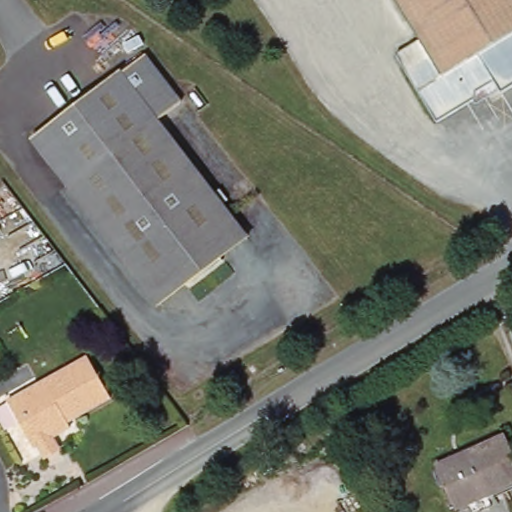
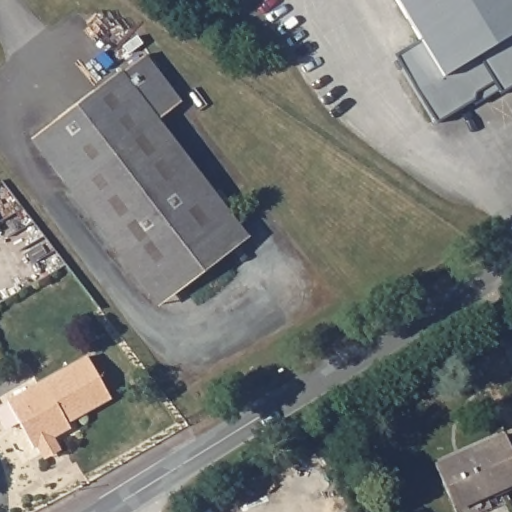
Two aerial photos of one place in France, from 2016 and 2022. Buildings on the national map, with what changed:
unchanged [(499,91),(492,81),(474,91),(470,102),(437,122),(396,57),(420,41),(394,0),(512,0),(512,84),(499,91)]
unchanged [(155,301),(30,139),(116,76),(118,79),(145,59),(181,108),(156,125),(242,236),(251,247),(227,265),(229,269),(193,295),(191,292),(163,312),(155,301)]
unchanged [(80,362),(102,400),(57,424),(61,431),(25,450),(1,407),(80,362)]
unchanged [(512,454),(512,481),(458,511),(436,473),(501,435),(512,454)]

